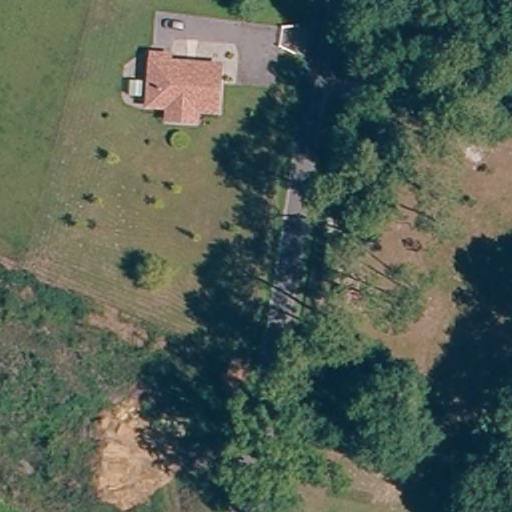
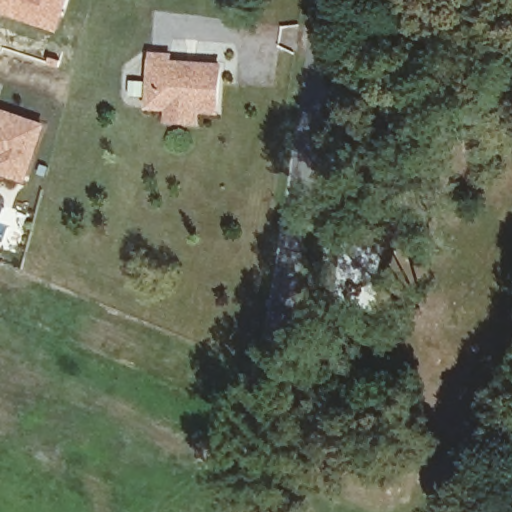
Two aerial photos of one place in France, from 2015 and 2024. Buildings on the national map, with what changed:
new [(56,33),(0,15),(0,0),(68,0),(56,33)]
unchanged [(170,117),(170,105),(147,103),(152,57),(180,61),(197,63),(224,67),(216,111),(195,108),(193,118),(170,117)]
new [(25,177),(0,169),(0,108),(44,123),(25,177)]

